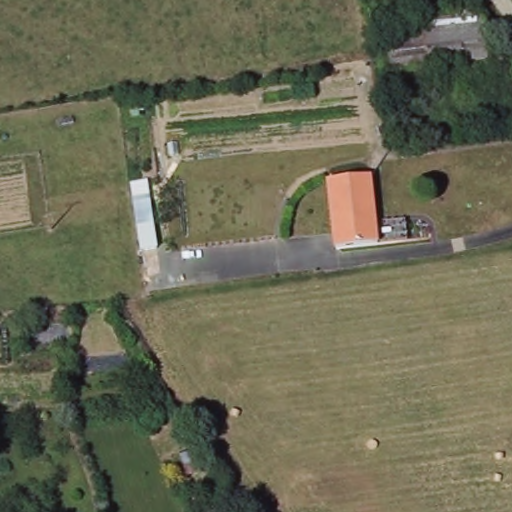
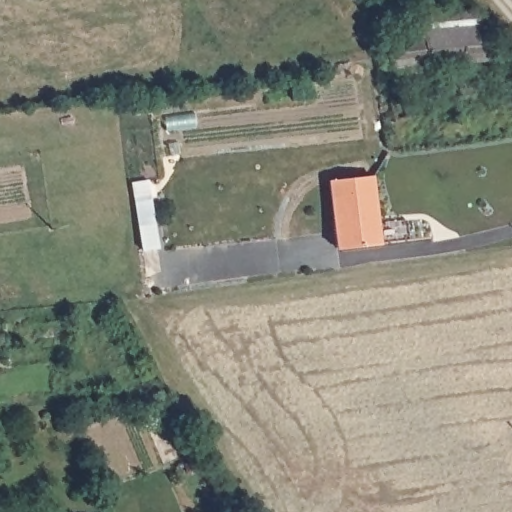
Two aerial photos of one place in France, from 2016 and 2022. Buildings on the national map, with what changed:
unchanged [(458,30),(453,30),(443,30),(443,11),(482,9),(494,24),(496,60),(462,63),(461,59),(458,30)]
unchanged [(439,65),(436,77),(424,79),(419,71),(397,73),(396,66),(386,67),(383,48),(392,47),(392,39),(419,35),(419,31),(419,30),(419,13),(434,12),(438,12),(442,11),(443,11),(443,30),(453,30),(458,30),(461,59),(462,63),(439,65)]
unchanged [(367,176),(376,241),(333,246),(327,180),(367,176)]

